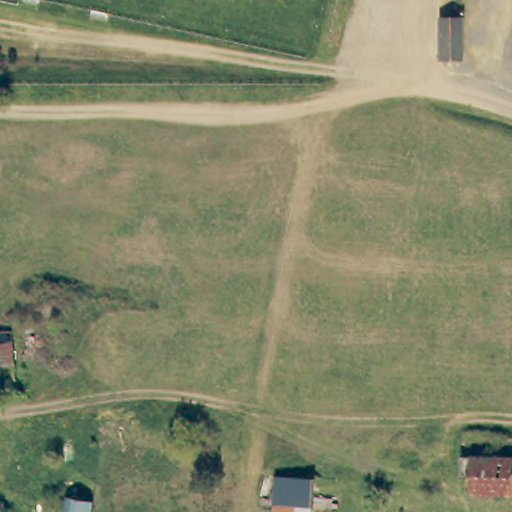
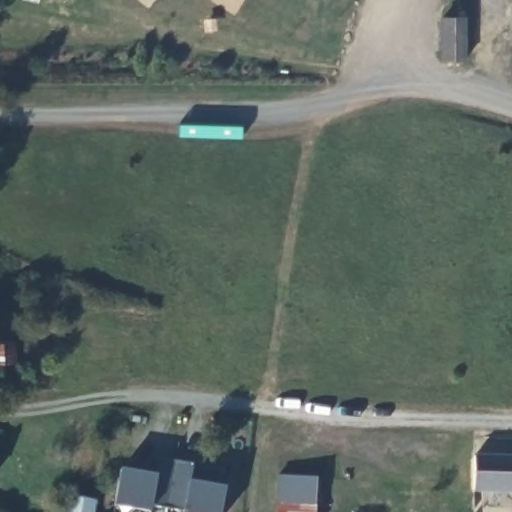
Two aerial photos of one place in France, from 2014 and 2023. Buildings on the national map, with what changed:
unchanged [(462,16),(462,57),(443,58),(443,16),(462,16)]
unchanged [(0,360),(0,340),(12,340),(11,360),(0,360)]
unchanged [(471,491),(471,475),(460,475),(461,455),(512,457),(512,493),(471,491)]
new [(221,512),(184,512),(184,511),(151,505),(150,512),(114,506),(120,470),(155,476),(158,458),(192,464),(192,482),(225,489),(221,512)]
unchanged [(316,478),(315,506),(276,503),(277,476),(316,478)]
unchanged [(91,512),(65,512),(67,498),(92,502),(91,512)]
unchanged [(276,503),(315,506),(315,512),(276,512),(276,503)]

